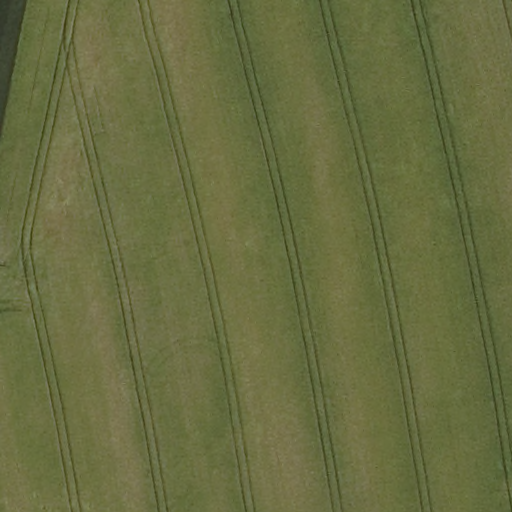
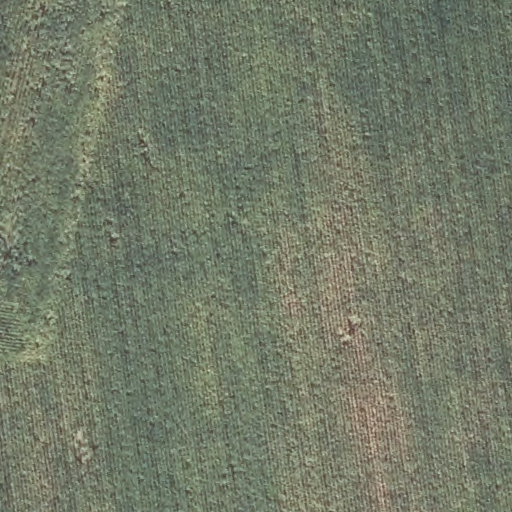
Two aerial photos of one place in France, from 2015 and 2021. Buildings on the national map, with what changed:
[]

